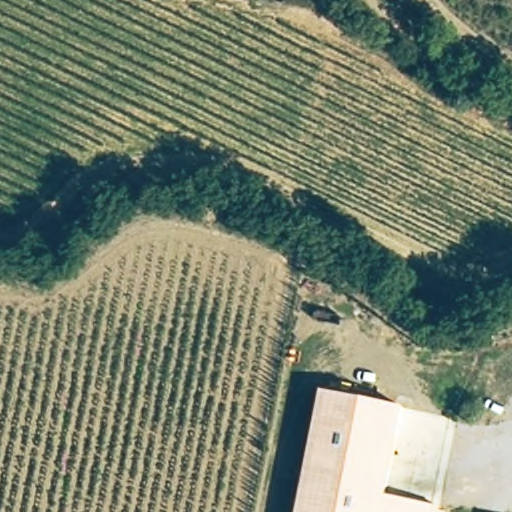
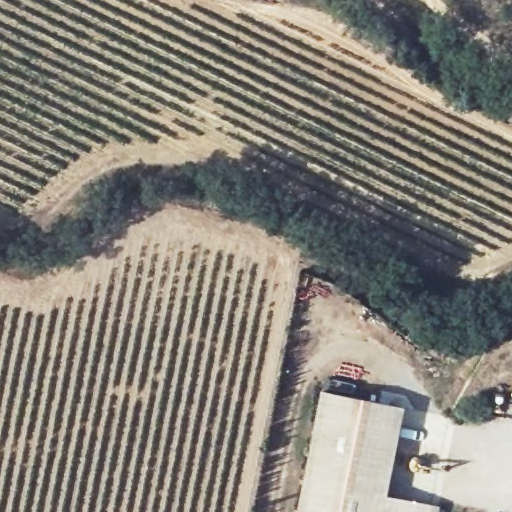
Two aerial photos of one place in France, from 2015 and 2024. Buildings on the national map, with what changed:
unchanged [(405,407),(387,493),(440,504),(438,512),(299,512),(324,391),(405,407)]

